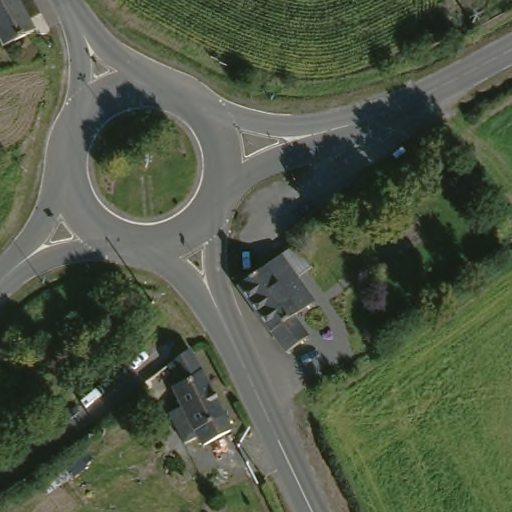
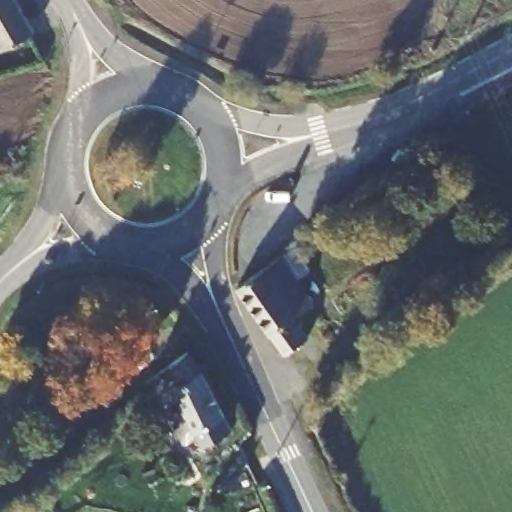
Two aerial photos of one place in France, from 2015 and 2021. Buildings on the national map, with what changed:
unchanged [(0,23),(0,0),(26,0),(44,31),(14,47),(0,23)]
unchanged [(316,268),(302,279),(319,301),(299,315),(313,336),(291,353),(244,287),(285,256),(287,258),(301,247),(316,268)]
unchanged [(236,432),(207,446),(177,387),(184,383),(175,365),(194,348),(236,432)]

